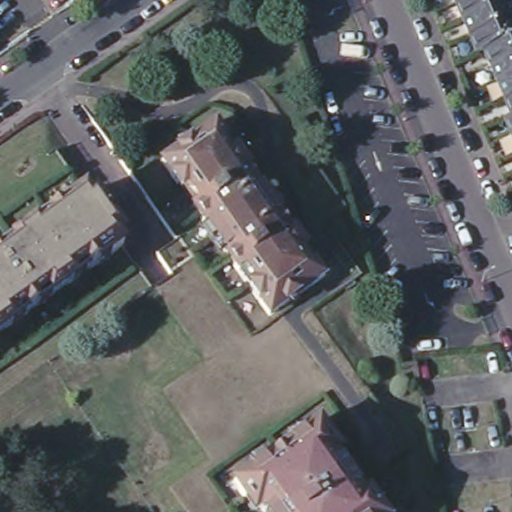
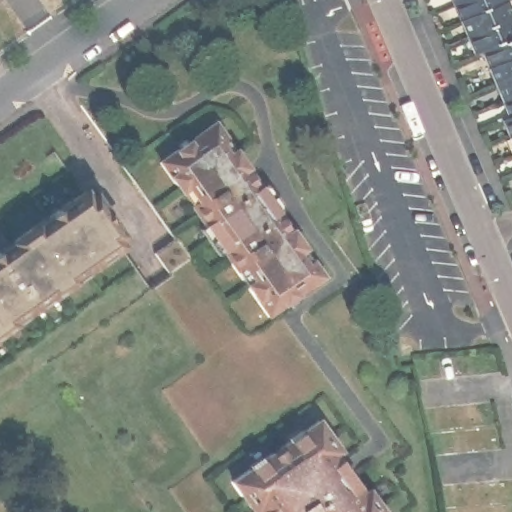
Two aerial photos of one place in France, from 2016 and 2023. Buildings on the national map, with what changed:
unchanged [(512,146),(502,124),(510,121),(481,56),(475,59),(450,0),(500,0),(512,28),(512,146)]
unchanged [(320,279),(265,318),(157,162),(214,123),(320,279)]
unchanged [(121,252),(0,338),(0,257),(82,199),(121,252)]
unchanged [(386,512),(259,512),(239,483),(325,423),(386,512)]

